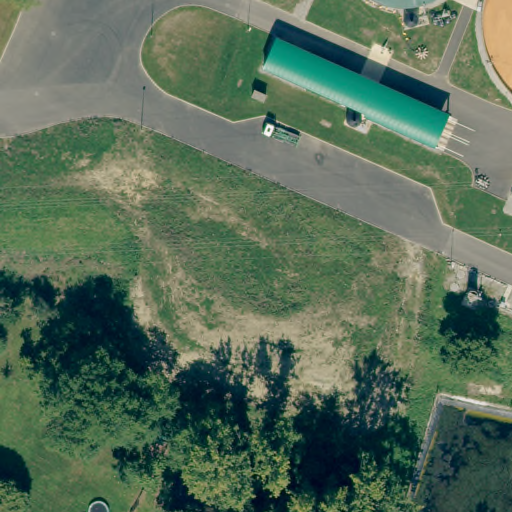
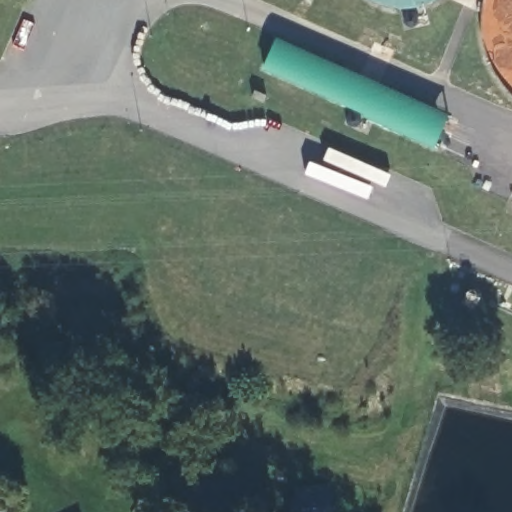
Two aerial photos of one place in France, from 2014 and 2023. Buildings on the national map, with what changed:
unchanged [(446,116),(432,148),(261,70),(276,39),(446,116)]
unchanged [(50,445),(60,446),(60,456),(50,454),(50,445)]

